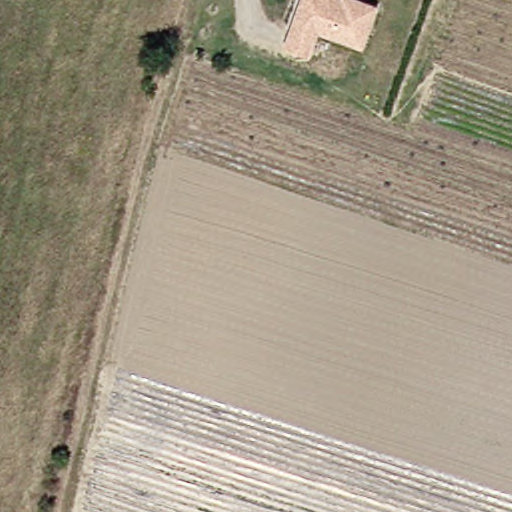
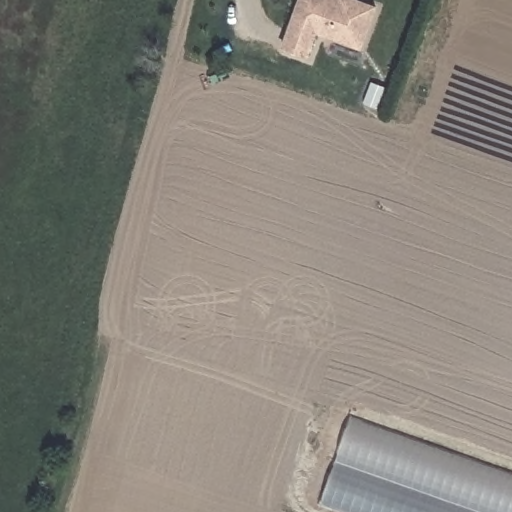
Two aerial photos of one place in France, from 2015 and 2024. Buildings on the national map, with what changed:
unchanged [(320,29),(311,53),(287,45),(303,0),(370,0),(380,3),(366,44),(320,29)]
new [(354,415),(512,471),(512,512),(347,512),(323,503),(354,415)]

